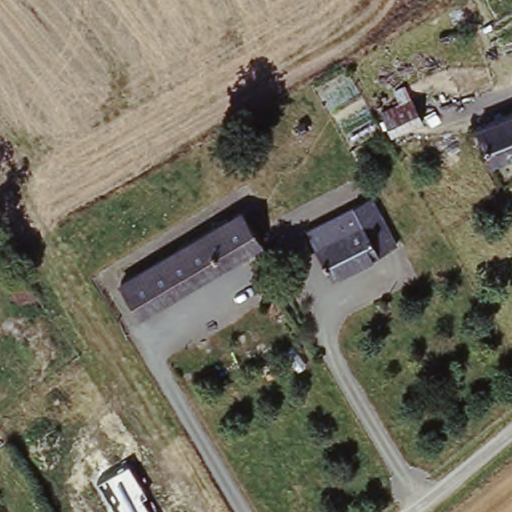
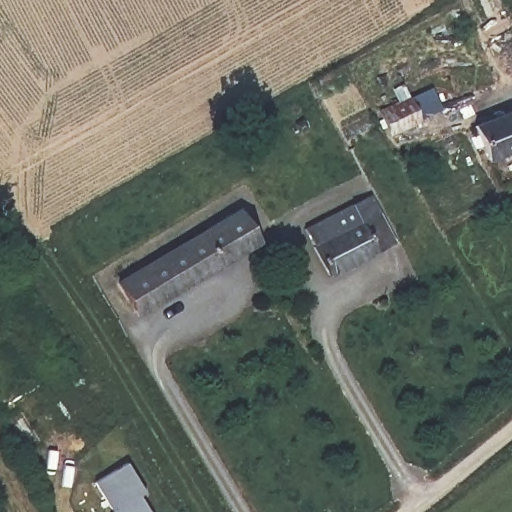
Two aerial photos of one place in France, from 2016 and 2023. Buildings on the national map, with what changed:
unchanged [(410,98),(421,120),(390,136),(380,112),(410,98)]
unchanged [(512,117),(512,159),(489,169),(475,132),(512,117)]
unchanged [(370,198),(396,244),(330,278),(305,231),(370,198)]
unchanged [(265,249),(200,289),(144,322),(125,289),(244,217),(265,249)]
new [(147,493),(141,496),(151,512),(115,512),(115,511),(97,482),(128,463),(147,493)]

